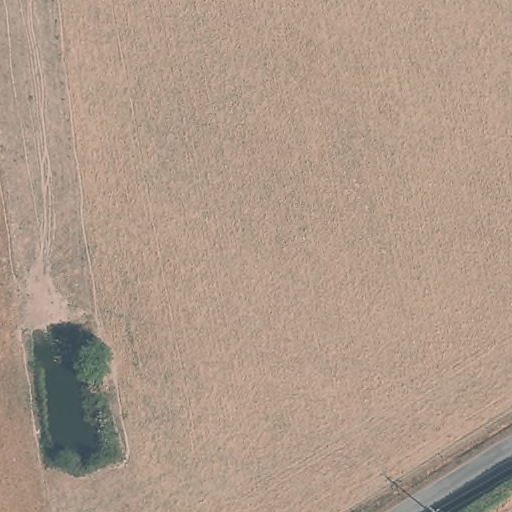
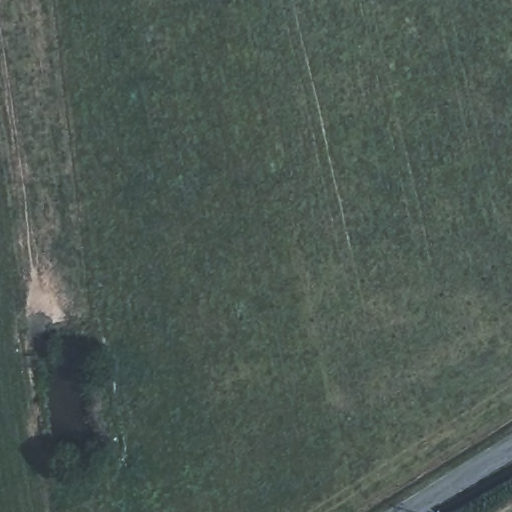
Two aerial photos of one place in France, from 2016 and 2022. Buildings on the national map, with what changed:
[]

